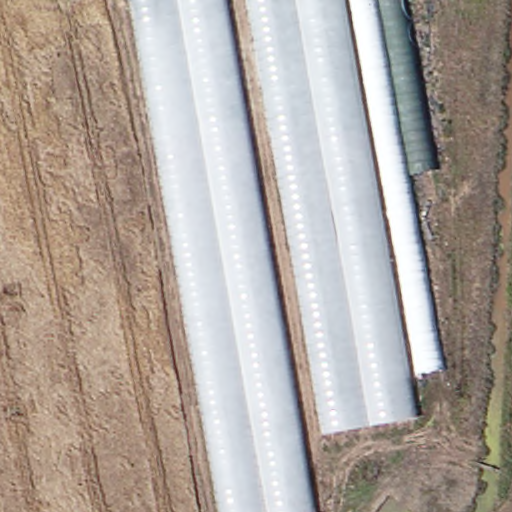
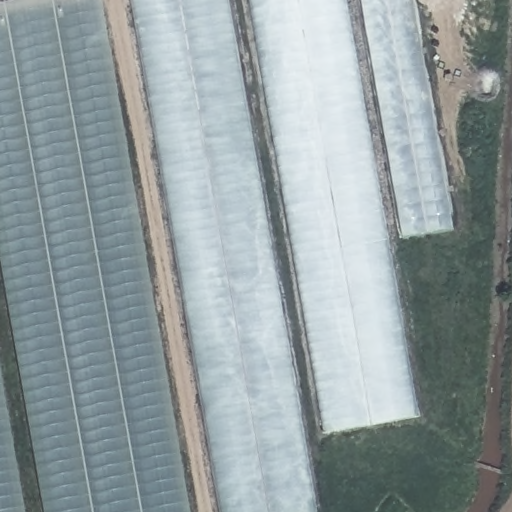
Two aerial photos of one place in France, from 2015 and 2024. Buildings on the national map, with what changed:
new [(0,255),(0,3),(18,0),(106,0),(195,512),(44,512),(0,255)]
unchanged [(135,0),(230,0),(317,512),(227,512),(135,0)]
unchanged [(255,0),(345,0),(418,420),(330,434),(255,0)]
unchanged [(436,172),(447,234),(422,236),(447,389),(430,390),(359,0),(440,0),(473,164),(436,172)]
new [(0,347),(30,512),(0,512),(0,347)]

